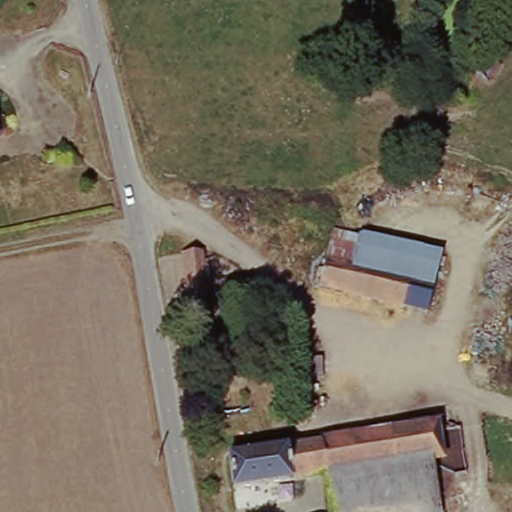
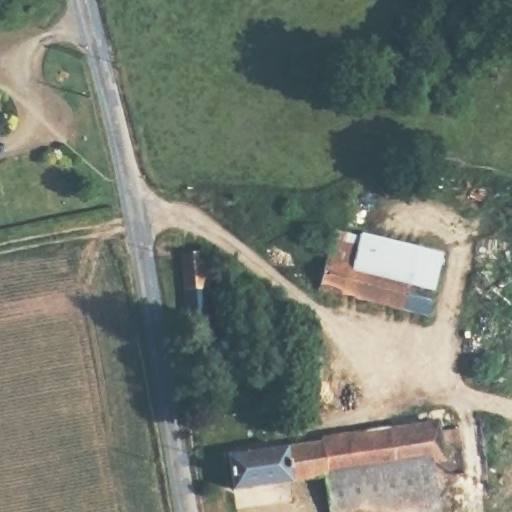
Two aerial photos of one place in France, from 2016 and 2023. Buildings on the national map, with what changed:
unchanged [(485,47),(498,54),(490,74),(476,67),(485,47)]
unchanged [(318,287),(337,225),(444,252),(428,313),(318,287)]
unchanged [(183,252),(204,251),(213,317),(191,317),(183,252)]
unchanged [(233,457),(286,451),(330,444),(328,437),(433,423),(436,463),(332,476),(294,482),(238,492),(236,485),(233,457)]
unchanged [(441,512),(337,512),(332,476),(436,463),(441,512)]

